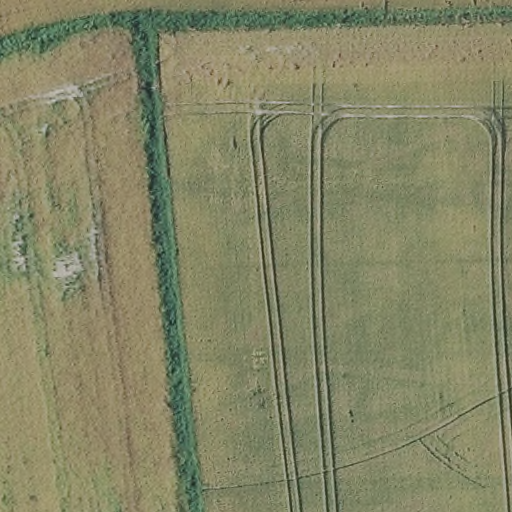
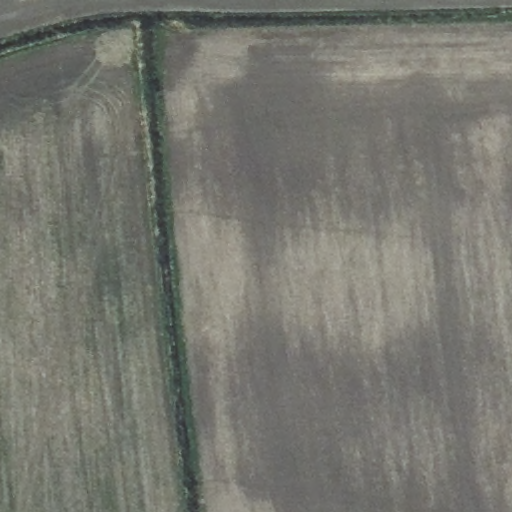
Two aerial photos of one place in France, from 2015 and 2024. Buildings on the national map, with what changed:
[]

